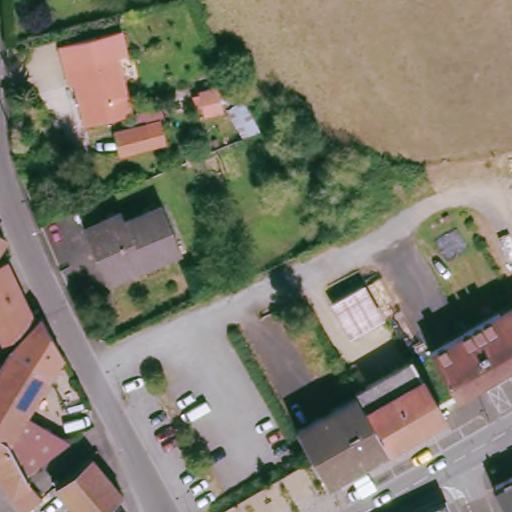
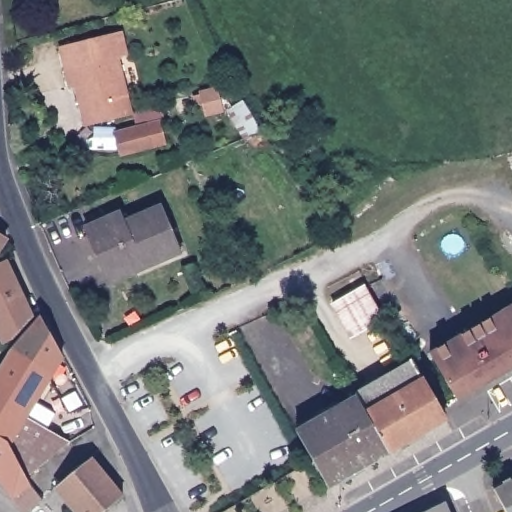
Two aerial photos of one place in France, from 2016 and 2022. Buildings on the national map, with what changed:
unchanged [(122,27),(127,50),(117,53),(133,112),(87,125),(75,85),(70,86),(59,45),(122,27)]
unchanged [(208,117),(205,107),(199,109),(195,97),(202,95),(201,92),(220,87),(227,111),(208,117)]
unchanged [(160,121),(165,140),(122,152),(117,132),(160,121)]
unchanged [(117,223),(156,207),(175,254),(138,270),(134,260),(105,274),(87,228),(114,216),(117,223)]
unchanged [(0,242),(0,230),(5,234),(0,242)]
unchanged [(33,311),(15,330),(15,332),(5,337),(0,327),(0,257),(6,255),(33,311)]
unchanged [(333,303),(362,287),(380,320),(351,335),(333,303)]
unchanged [(501,370),(500,373),(493,372),(489,375),(489,381),(456,400),(430,350),(500,310),(502,311),(512,306),(512,364),(501,370)]
unchanged [(72,437),(26,471),(10,441),(0,436),(0,363),(12,345),(42,310),(62,349),(26,411),(72,437)]
unchanged [(445,417),(390,448),(359,393),(357,390),(414,360),(445,417)]
unchanged [(390,448),(322,486),(294,430),(359,393),(390,448)]
unchanged [(26,471),(34,487),(37,495),(23,506),(0,474),(0,436),(10,441),(26,471)]
unchanged [(99,512),(77,512),(54,483),(90,456),(121,495),(99,512)]
unchanged [(508,512),(494,485),(512,476),(512,512),(508,512)]
unchanged [(450,512),(421,512),(445,500),(450,512)]

